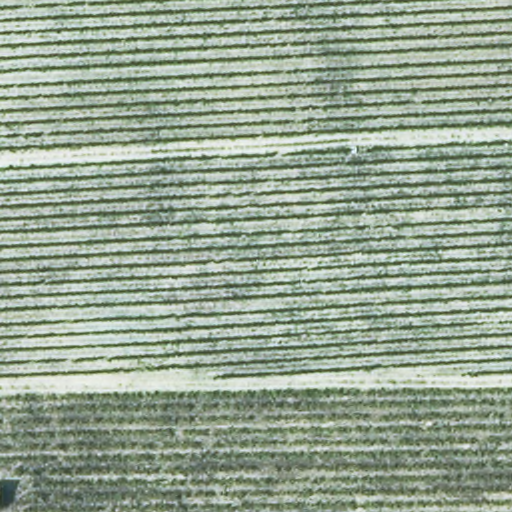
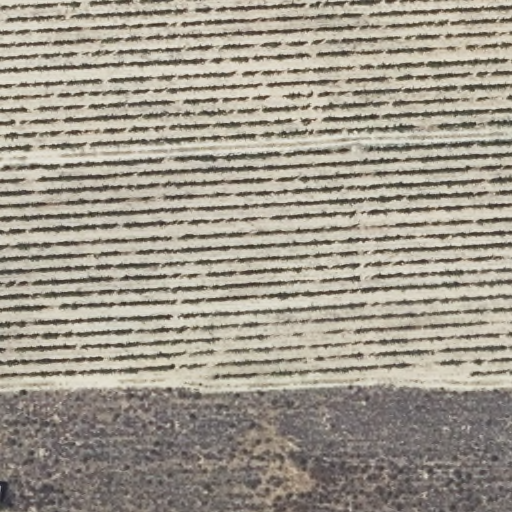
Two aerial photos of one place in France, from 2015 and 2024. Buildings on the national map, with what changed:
unchanged [(6,484),(3,504),(0,504),(0,483),(6,484)]

